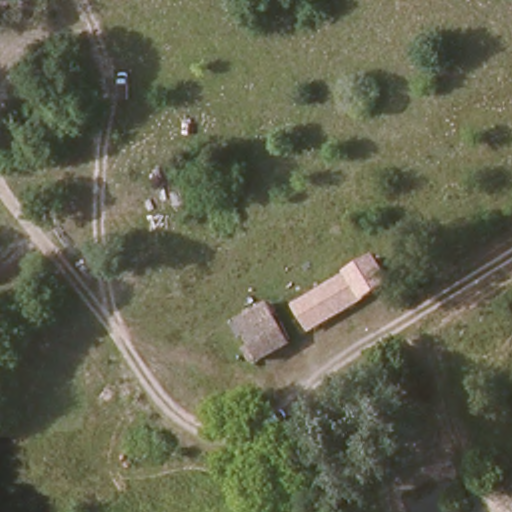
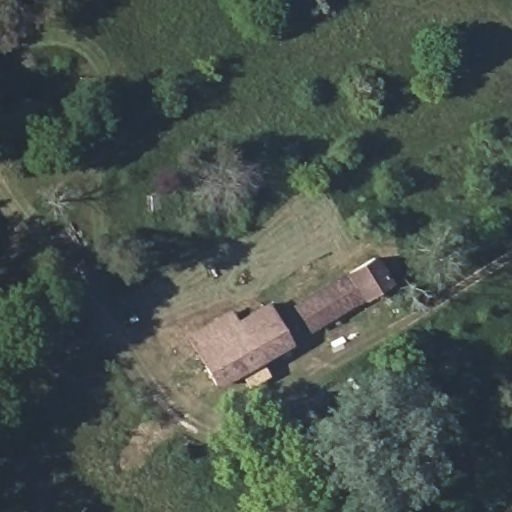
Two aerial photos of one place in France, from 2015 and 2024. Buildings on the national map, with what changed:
unchanged [(310,332),(297,306),(321,291),(316,283),(324,279),(330,285),(374,259),(391,286),(310,332)]
unchanged [(258,357),(238,321),(265,305),(283,341),(258,357)]
new [(216,389),(183,335),(230,307),(238,321),(258,357),(261,363),(216,389)]

